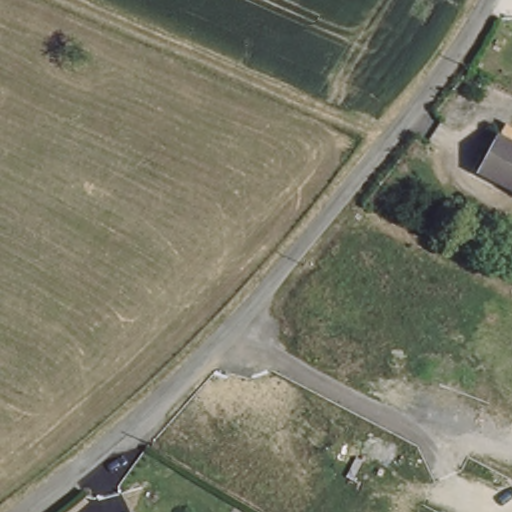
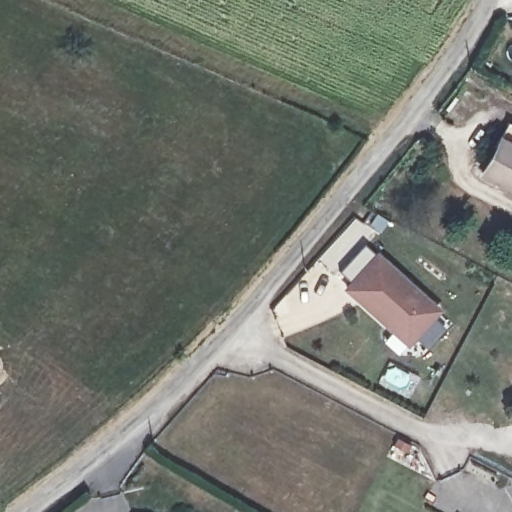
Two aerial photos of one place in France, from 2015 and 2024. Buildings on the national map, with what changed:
unchanged [(512,128),(512,193),(508,191),(507,194),(475,177),(505,124),(512,128)]
new [(342,292),(372,258),(433,312),(404,346),(390,333),(381,325),(342,292)]

